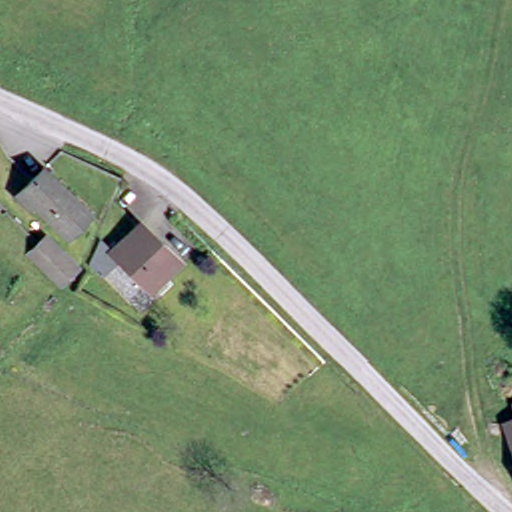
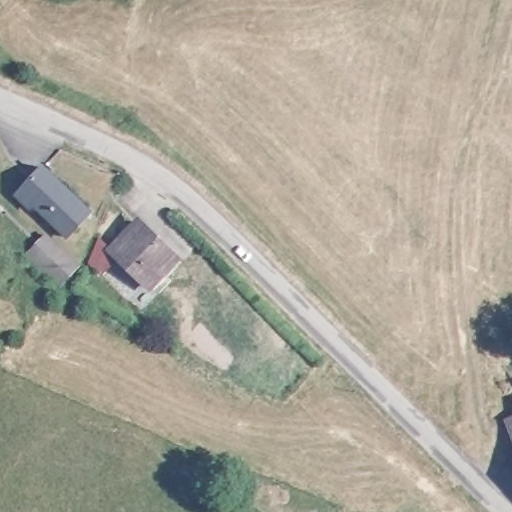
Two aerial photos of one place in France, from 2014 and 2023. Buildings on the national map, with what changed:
unchanged [(85,200),(64,224),(28,193),(24,198),(13,188),(37,159),(85,200)]
unchanged [(174,252),(146,280),(108,244),(137,216),(174,252)]
unchanged [(76,261),(58,281),(25,251),(43,232),(76,261)]
unchanged [(99,237),(108,244),(90,263),(82,254),(99,237)]
unchanged [(512,425),(512,437),(508,426),(512,425)]

